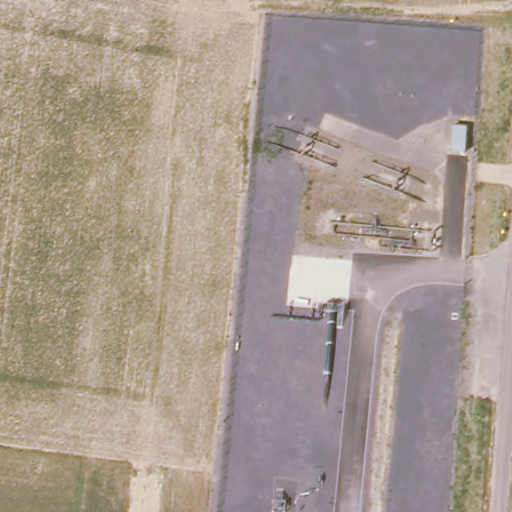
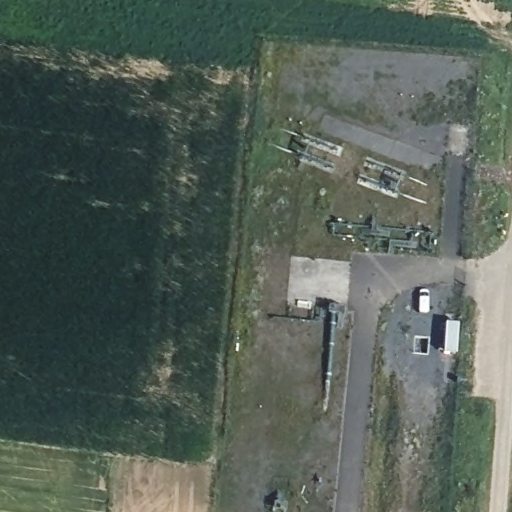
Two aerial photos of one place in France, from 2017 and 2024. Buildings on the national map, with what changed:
unchanged [(452,123),(469,123),(469,148),(452,147),(452,123)]

